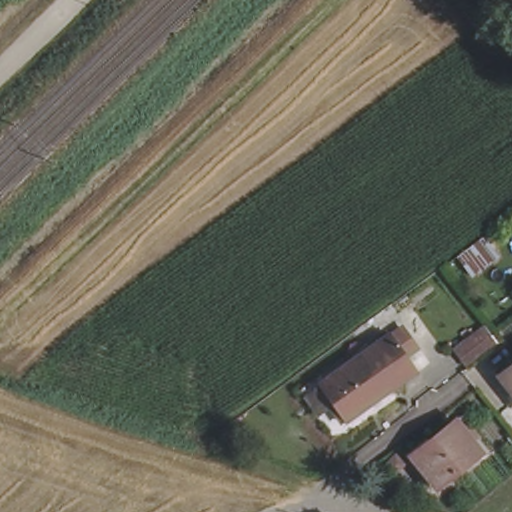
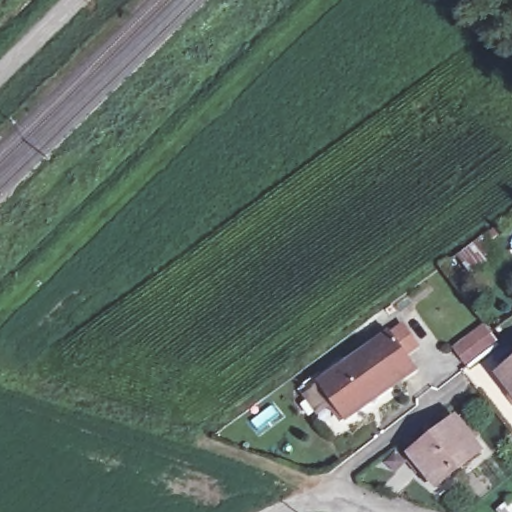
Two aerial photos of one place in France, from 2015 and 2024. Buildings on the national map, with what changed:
unchanged [(501,222),(505,227),(495,235),(505,248),(480,266),(466,248),(501,222)]
unchanged [(318,383),(391,332),(392,333),(402,326),(417,347),(407,354),(417,369),(345,421),(318,383)]
unchanged [(495,341),(466,363),(456,349),(484,328),(495,341)]
unchanged [(512,371),(512,389),(503,378),(512,371)]
unchanged [(476,439),(469,444),(476,454),(432,488),(420,473),(416,476),(404,461),(458,418),(476,439)]

